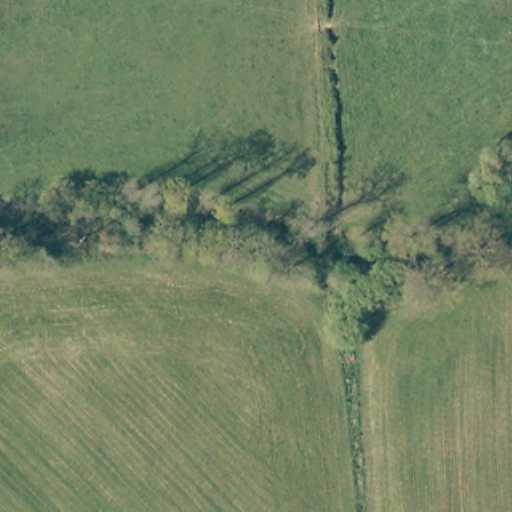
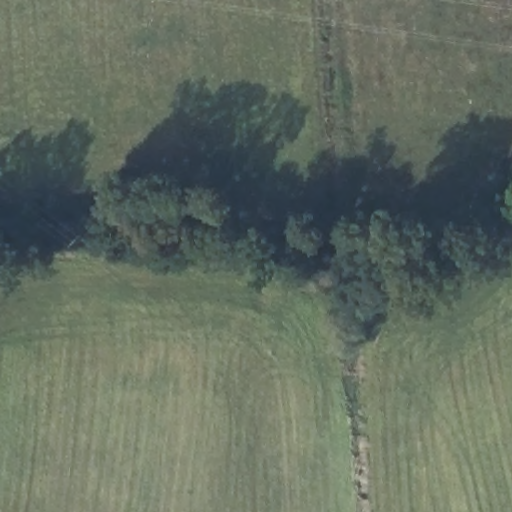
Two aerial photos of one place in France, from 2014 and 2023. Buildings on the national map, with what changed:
[]

